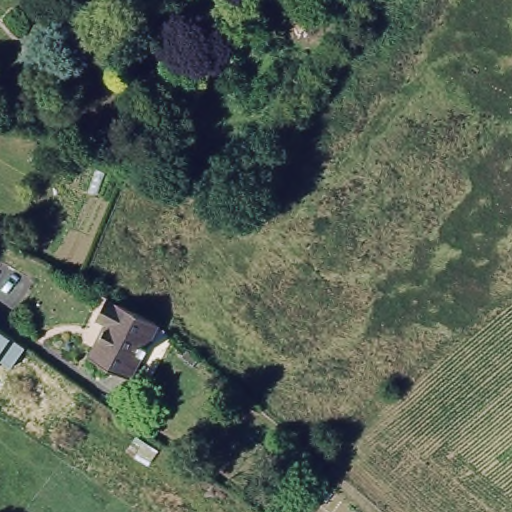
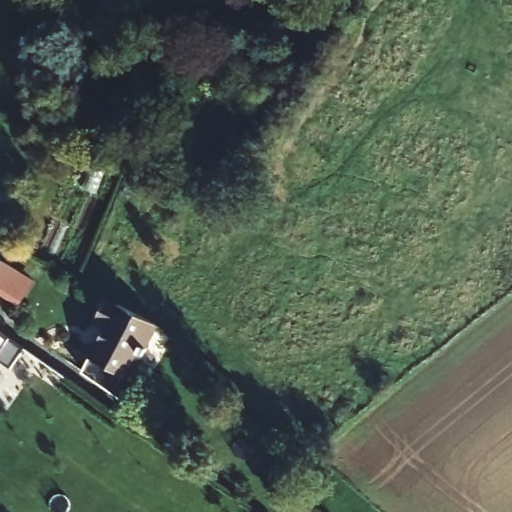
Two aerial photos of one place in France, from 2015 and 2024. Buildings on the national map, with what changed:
unchanged [(0,255),(34,275),(17,301),(0,291),(0,255)]
unchanged [(160,330),(132,376),(92,356),(106,330),(96,325),(107,303),(160,330)]
unchanged [(9,367),(0,362),(0,330),(24,346),(9,367)]

